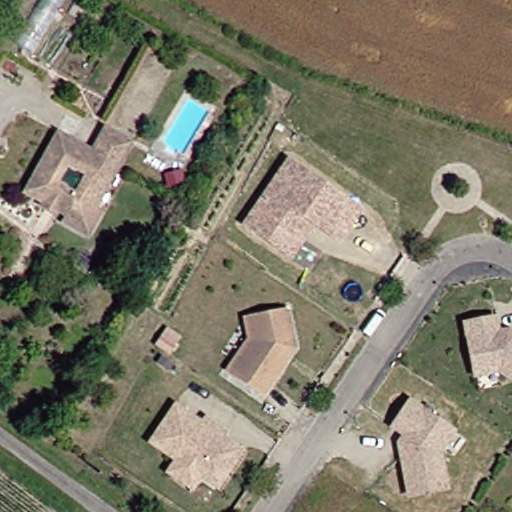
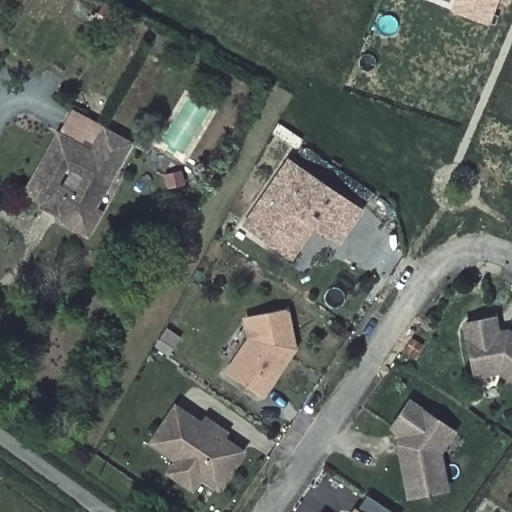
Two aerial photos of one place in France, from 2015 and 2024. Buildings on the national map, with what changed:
new [(450,11),(454,0),(498,0),(490,25),(450,11)]
unchanged [(62,213),(65,205),(31,187),(62,129),(96,146),(110,121),(137,136),(113,179),(124,184),(99,230),(62,213)]
unchanged [(245,227),(290,162),(362,212),(339,244),(313,226),(291,259),(277,249),(245,227)]
unchanged [(294,353),(263,399),(231,377),(255,341),(255,316),(295,317),(294,353)]
unchanged [(469,373),(463,321),(492,319),(494,334),(501,330),(511,336),(512,336),(512,382),(494,371),(469,373)]
unchanged [(165,357),(152,349),(163,334),(175,342),(165,357)]
unchanged [(176,458),(163,449),(150,441),(176,404),(189,412),(202,422),(206,417),(226,432),(223,436),(243,450),(217,487),(200,476),(192,488),(167,471),(176,458)]
unchanged [(395,447),(401,447),(402,440),(390,431),(405,405),(448,434),(435,456),(441,494),(404,499),(398,458),(396,458),(395,447)]
new [(359,512),(351,512),(353,509),(359,512)]

